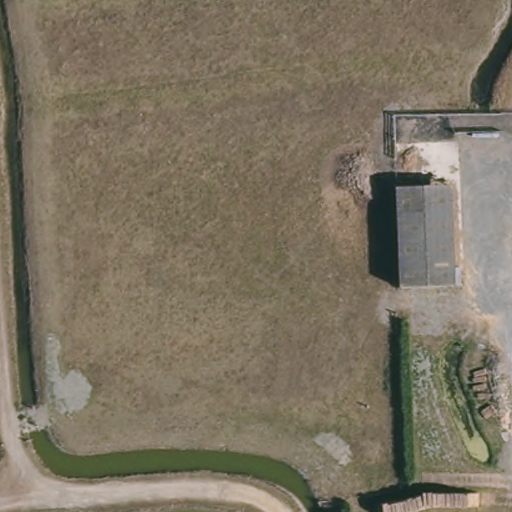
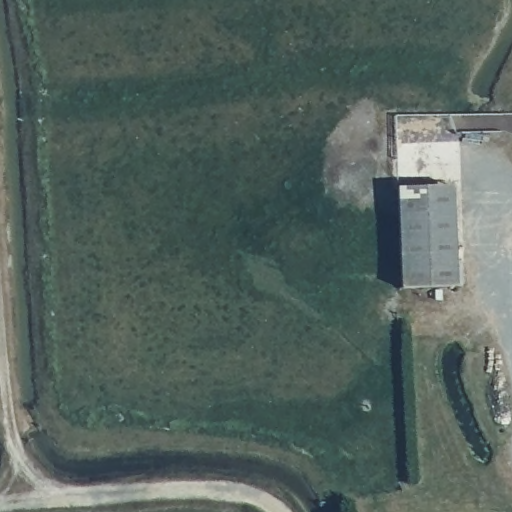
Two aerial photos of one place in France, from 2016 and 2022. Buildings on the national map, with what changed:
unchanged [(449,183),(461,285),(409,291),(396,190),(449,183)]

